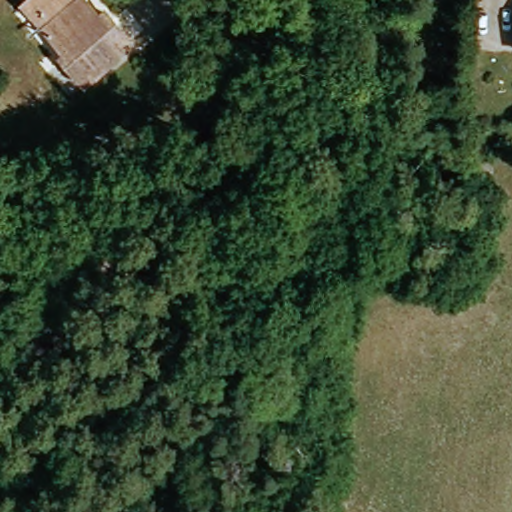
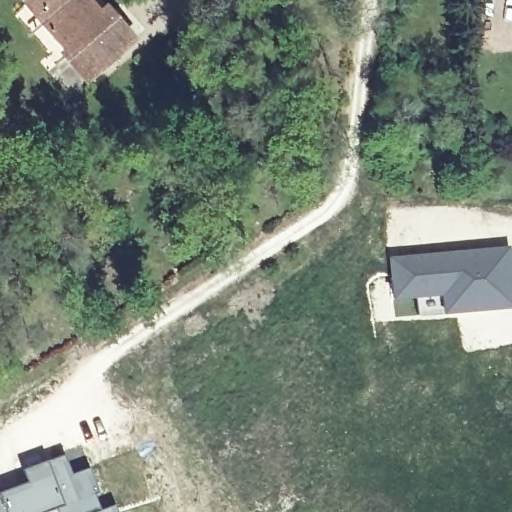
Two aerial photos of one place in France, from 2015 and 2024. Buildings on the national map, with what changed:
unchanged [(94,14),(102,7),(132,41),(87,80),(60,50),(64,45),(25,0),(26,0),(82,0),(94,14)]
new [(441,295),(394,300),(390,258),(509,247),(512,278),(512,308),(444,315),(441,295)]
new [(22,470),(62,453),(70,472),(87,465),(97,490),(93,492),(100,508),(114,502),(118,512),(57,512),(55,507),(43,512),(0,512),(0,493),(26,482),(22,470)]

